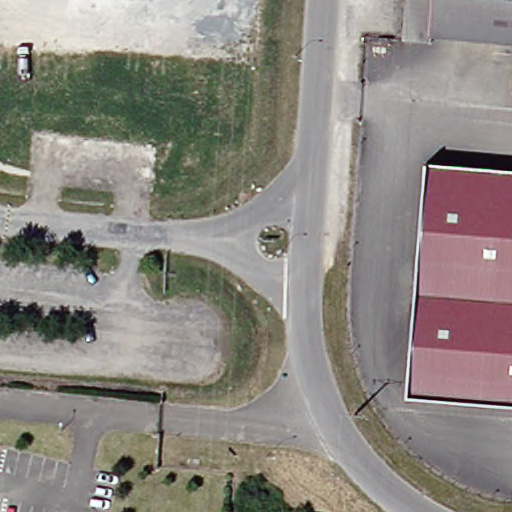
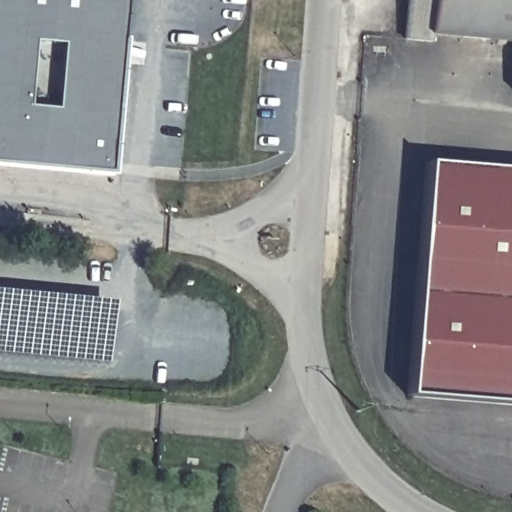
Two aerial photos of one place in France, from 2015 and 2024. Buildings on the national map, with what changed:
new [(0,155),(0,0),(125,0),(110,166),(0,155)]
unchanged [(431,35),(430,45),(402,43),(406,0),(512,0),(512,43),(431,35)]
unchanged [(402,398),(422,164),(512,168),(512,403),(402,398)]
new [(106,364),(0,353),(0,290),(112,302),(106,364)]
unchanged [(253,512),(249,511),(252,495),(271,500),(268,512),(253,512)]

